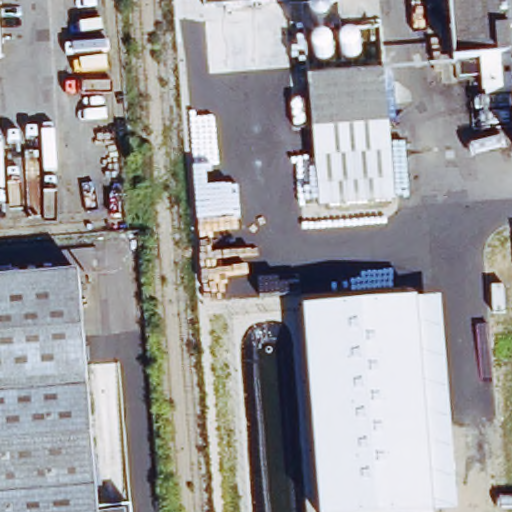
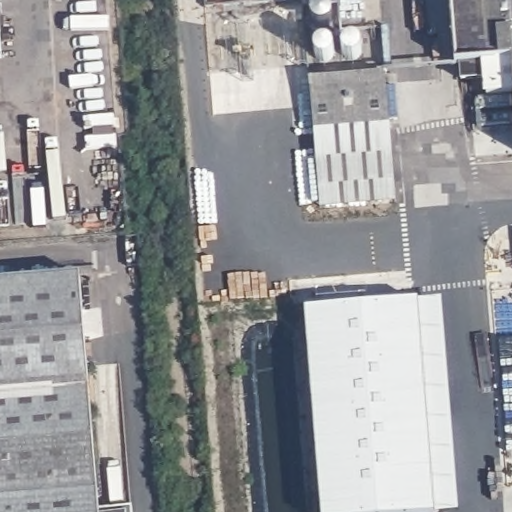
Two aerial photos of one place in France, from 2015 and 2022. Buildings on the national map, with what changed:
unchanged [(455,69),(449,0),(512,0),(512,73),(511,65),(455,69)]
unchanged [(307,85),(382,79),(386,128),(311,134),(307,85)]
unchanged [(391,201),(319,207),(311,134),(386,128),(391,201)]
unchanged [(65,295),(77,295),(81,296),(81,297),(81,298),(98,512),(0,512),(0,298),(65,295)]
unchanged [(420,300),(442,298),(459,511),(450,512),(320,512),(305,309),(420,300)]

